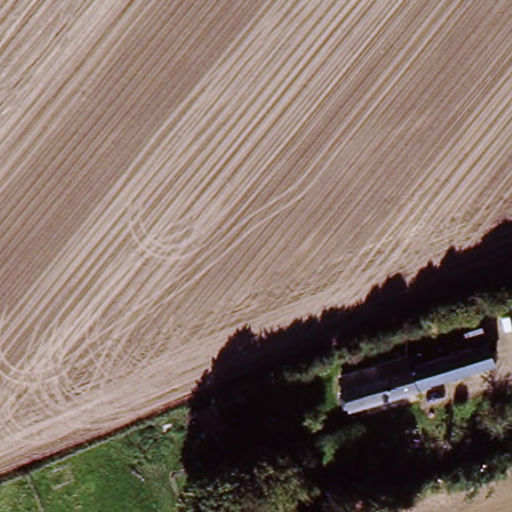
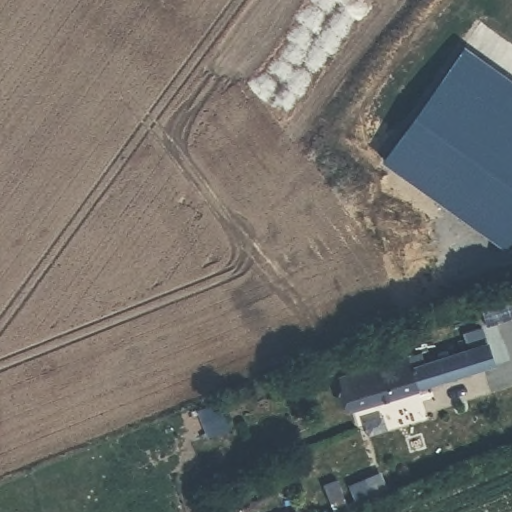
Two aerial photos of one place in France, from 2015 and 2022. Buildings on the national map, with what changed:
new [(512,78),(512,237),(505,247),(382,159),(465,44),(512,78)]
unchanged [(484,367),(349,413),(340,387),(475,342),(484,367)]
new [(340,387),(337,377),(408,354),(412,363),(340,387)]

